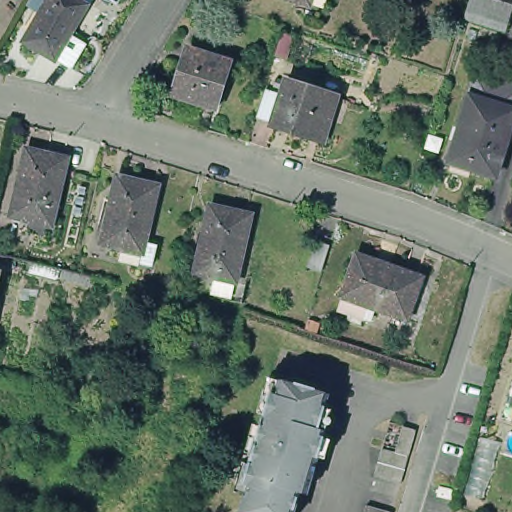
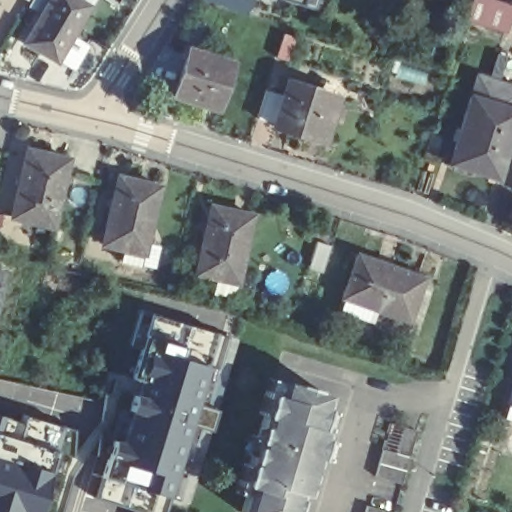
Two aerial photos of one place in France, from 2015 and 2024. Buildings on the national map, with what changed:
unchanged [(52,54),(20,37),(42,0),(83,0),(52,54)]
unchanged [(307,4),(295,0),(309,0),(307,4)]
unchanged [(465,0),(512,0),(512,38),(460,15),(465,0)]
unchanged [(170,93),(181,56),(184,49),(195,52),(227,63),(212,106),(170,93)]
unchanged [(295,130),(263,118),(280,73),(326,89),(330,91),(322,113),(318,112),(312,129),(311,136),(295,130)]
unchanged [(464,80),(511,94),(505,115),(457,101),(464,80)]
unchanged [(485,182),(437,167),(457,101),(505,115),(485,182)]
unchanged [(49,222),(6,213),(13,183),(15,184),(25,145),(63,155),(49,222)]
unchanged [(143,251),(112,244),(115,234),(95,229),(102,198),(105,198),(114,162),(150,171),(137,227),(148,230),(143,251)]
unchanged [(232,287),(200,279),(204,264),(187,260),(194,227),(198,227),(206,192),(245,202),(227,270),(235,272),(232,287)]
unchanged [(342,290),(347,273),(356,246),(390,258),(422,269),(413,294),(407,313),(372,300),(368,311),(338,301),(342,290)]
new [(218,405),(212,426),(194,421),(175,496),(153,490),(148,509),(95,495),(152,309),(220,332),(200,400),(218,405)]
unchanged [(312,428),(319,430),(301,492),(293,490),(287,512),(238,512),(235,511),(243,483),(237,482),(268,378),(322,394),(312,428)]
unchanged [(509,397),(512,387),(512,414),(505,412),(509,397)]
new [(0,512),(0,406),(68,425),(43,512),(0,512)]
unchanged [(400,482),(373,474),(382,448),(389,421),(402,425),(415,429),(400,482)]
unchanged [(392,512),(363,512),(365,503),(392,511),(392,512)]

